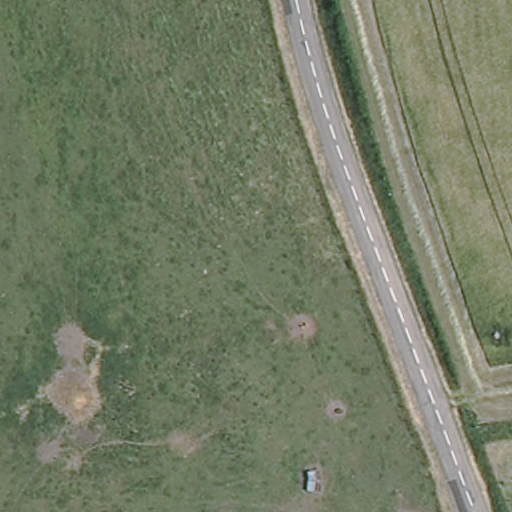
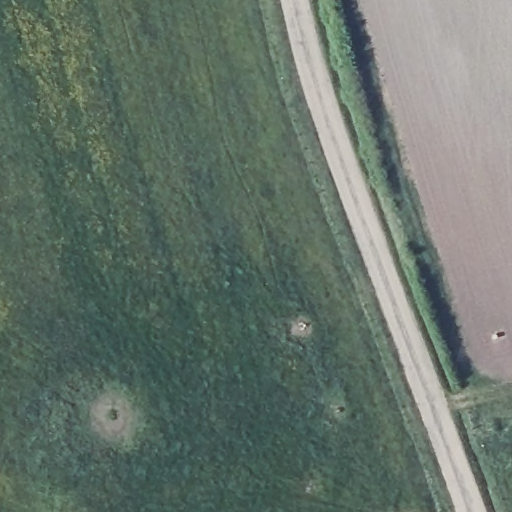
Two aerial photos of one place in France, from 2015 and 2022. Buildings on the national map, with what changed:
[]

